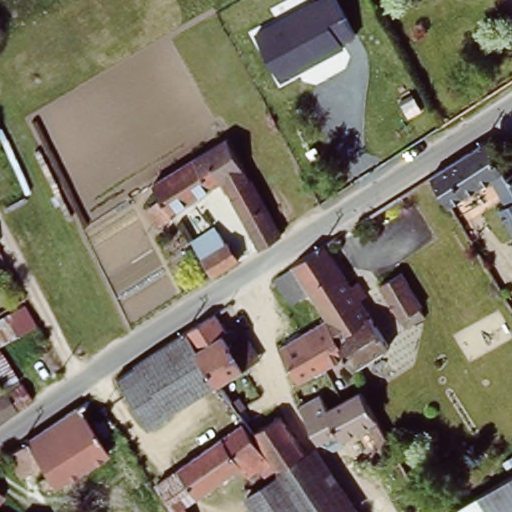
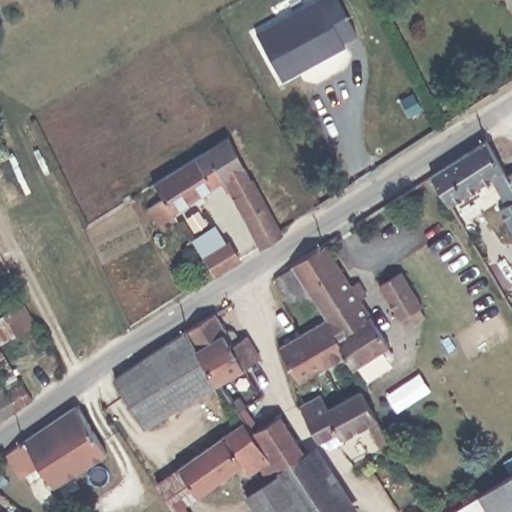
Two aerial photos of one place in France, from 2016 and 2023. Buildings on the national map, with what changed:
unchanged [(319,0),(335,0),(355,37),(343,45),(345,50),(280,83),(255,34),(319,0)]
unchanged [(257,250),(220,182),(169,214),(171,217),(156,225),(147,211),(161,201),(151,185),(225,136),(247,177),(281,234),(257,250)]
unchanged [(482,146),(502,180),(512,174),(512,250),(492,215),(502,208),(488,183),(442,211),(425,181),(482,146)]
unchanged [(187,240),(210,226),(219,242),(223,240),(233,256),(208,272),(206,268),(198,256),(187,240)]
unchanged [(325,322),(323,322),(316,310),(306,293),(287,305),(272,280),(290,267),(322,246),(348,286),(355,282),(364,295),(357,299),(390,347),(354,368),(345,354),(325,322)]
unchanged [(372,290),(394,276),(415,310),(412,312),(417,322),(398,334),(372,290)]
unchanged [(186,340),(233,310),(264,359),(261,360),(215,388),(186,340)]
unchanged [(323,366),(302,330),(310,325),(305,316),(316,310),(323,322),(325,322),(345,354),(323,366)]
unchanged [(297,381),(277,345),(289,337),(302,330),(323,366),(297,381)]
unchanged [(150,360),(152,360),(186,340),(215,388),(143,432),(113,385),(150,360)]
unchanged [(20,406),(0,420),(0,397),(11,390),(20,406)]
unchanged [(324,448),(322,445),(320,447),(319,446),(307,423),(327,411),(327,413),(361,393),(388,445),(377,451),(364,429),(343,441),(330,450),(324,448)]
unchanged [(53,417),(70,408),(88,396),(108,425),(103,430),(112,445),(51,487),(48,485),(40,491),(32,480),(40,475),(33,465),(17,476),(2,455),(53,417)]
unchanged [(305,463),(277,480),(277,478),(251,435),(277,420),(300,457),(305,463)]
unchanged [(275,479),(265,485),(256,473),(244,481),(238,473),(195,502),(180,512),(169,512),(153,489),(176,473),(242,429),(275,479)]
unchanged [(257,500),(281,485),(277,480),(305,463),(315,456),(351,512),(250,512),(247,507),(257,500)]
unchanged [(457,512),(512,476),(512,512),(457,512)]

